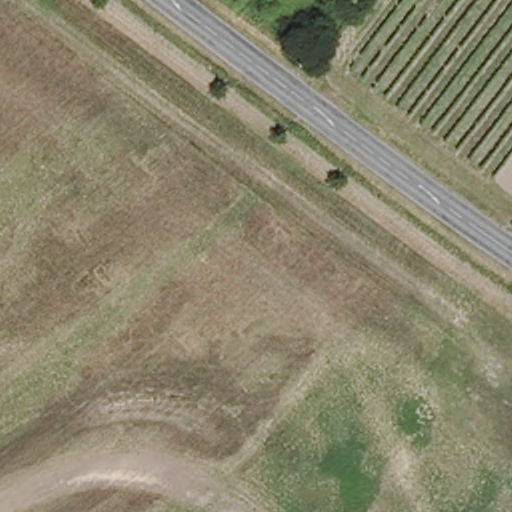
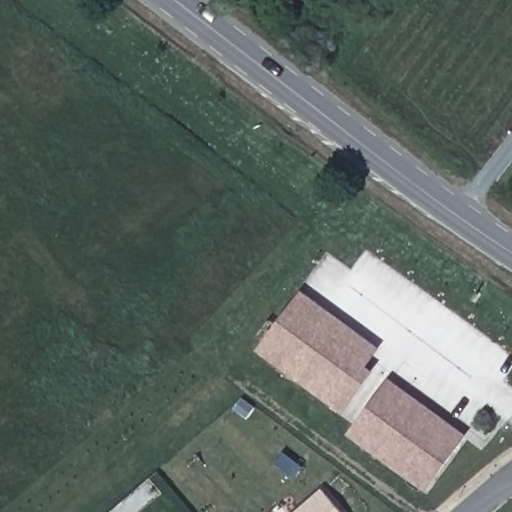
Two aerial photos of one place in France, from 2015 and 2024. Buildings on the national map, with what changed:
new [(300,290),(380,348),(366,366),(373,371),(341,415),(255,352),(300,290)]
new [(387,378),(466,435),(425,493),(346,436),(387,378)]
new [(321,488),(342,512),(294,512),(321,488)]

